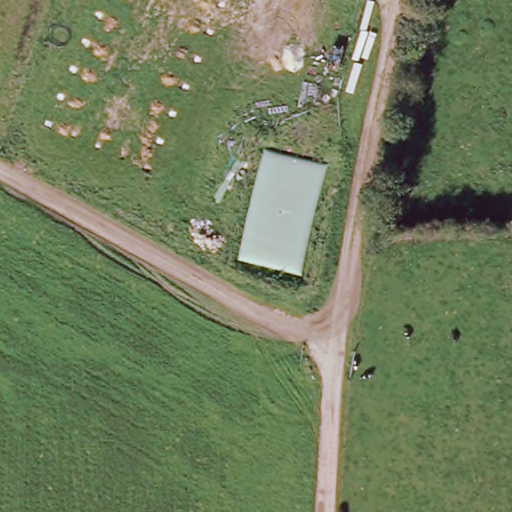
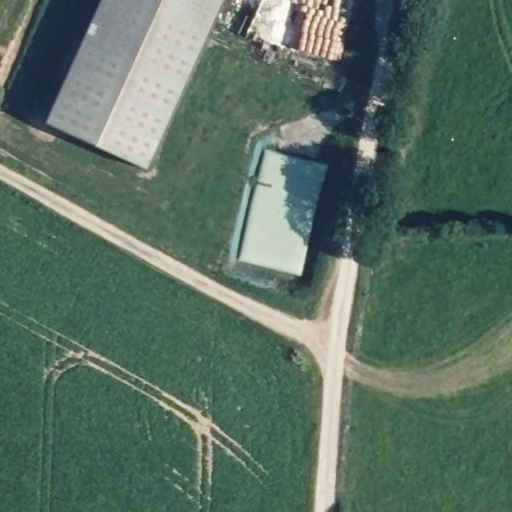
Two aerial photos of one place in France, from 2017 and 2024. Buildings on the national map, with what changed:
new [(105,0),(229,0),(154,165),(51,118),(105,0)]

